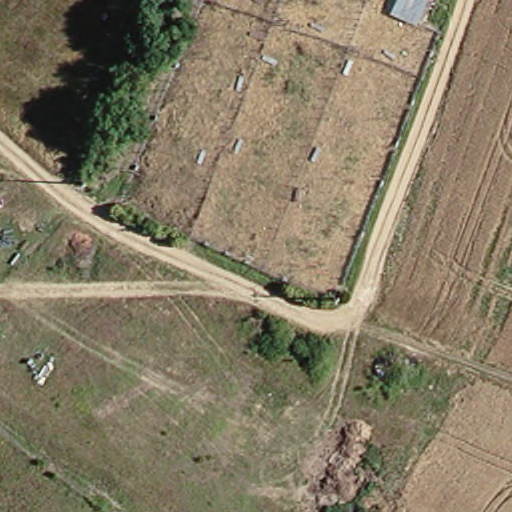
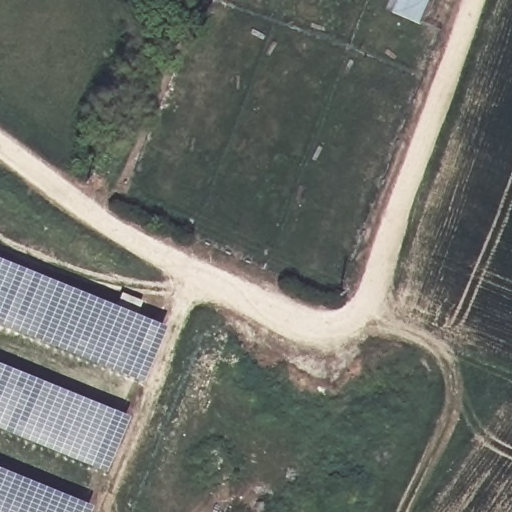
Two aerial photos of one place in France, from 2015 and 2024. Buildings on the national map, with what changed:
unchanged [(390,0),(431,0),(420,25),(386,12),(390,0)]
new [(0,326),(0,262),(166,330),(144,385),(0,326)]
new [(105,474),(0,431),(0,368),(127,420),(105,474)]
new [(0,471),(91,508),(90,512),(0,512),(0,471)]

